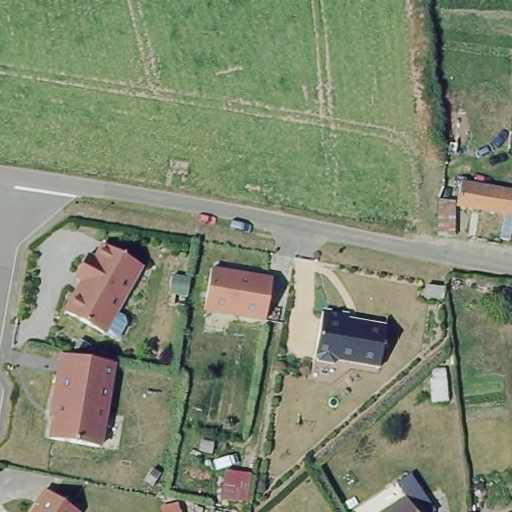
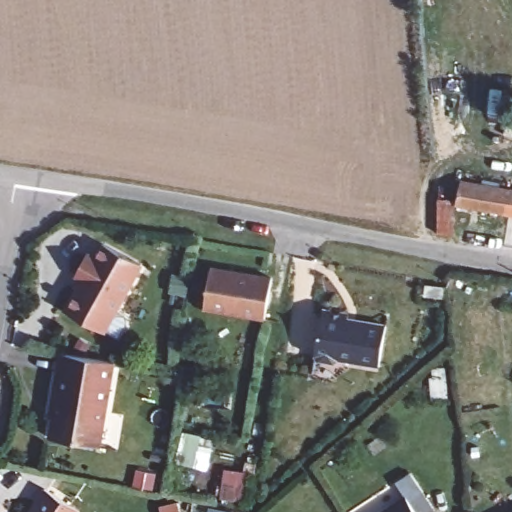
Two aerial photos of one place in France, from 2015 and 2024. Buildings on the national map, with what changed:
unchanged [(504,209),(457,200),(460,175),(509,184),(505,201),(504,209)]
unchanged [(508,235),(500,234),(503,214),(504,209),(505,201),(509,184),(512,184),(512,215),(508,235)]
unchanged [(433,228),(430,200),(443,199),(447,231),(433,228)]
unchanged [(77,275),(88,254),(96,258),(102,247),(140,267),(107,332),(68,312),(85,279),(77,275)]
unchanged [(207,308),(213,267),(275,277),(267,318),(207,308)]
unchanged [(446,287),(445,297),(427,294),(429,285),(446,287)]
unchanged [(341,360),(337,363),(320,360),(317,355),(325,310),(351,315),(350,320),(389,326),(382,367),(341,360)]
unchanged [(97,359),(115,362),(100,446),(52,438),(60,398),(55,397),(62,353),(97,359)]
unchanged [(382,487),(395,479),(417,512),(379,512),(392,503),(382,487)]
unchanged [(79,512),(33,512),(38,504),(36,503),(45,488),(80,509),(79,512)]
unchanged [(505,512),(512,509),(512,512),(505,512)]

